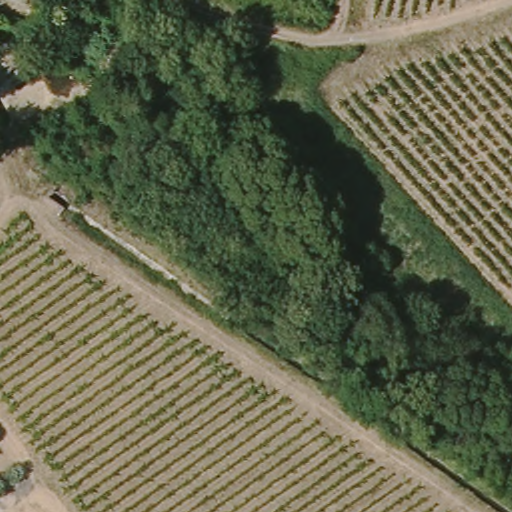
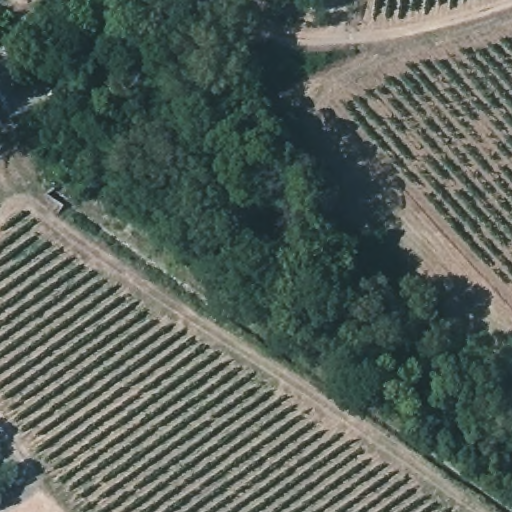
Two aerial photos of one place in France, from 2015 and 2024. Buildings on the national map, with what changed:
[]

